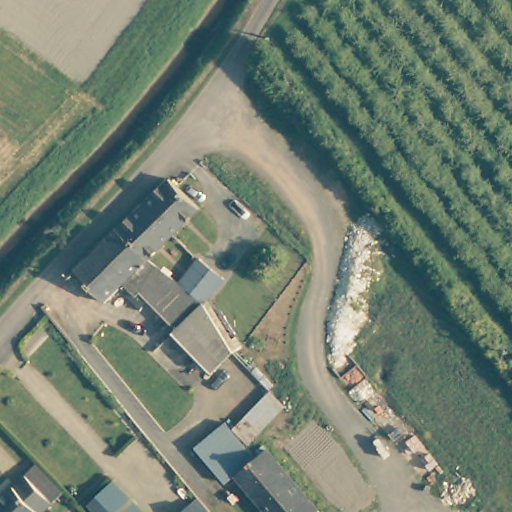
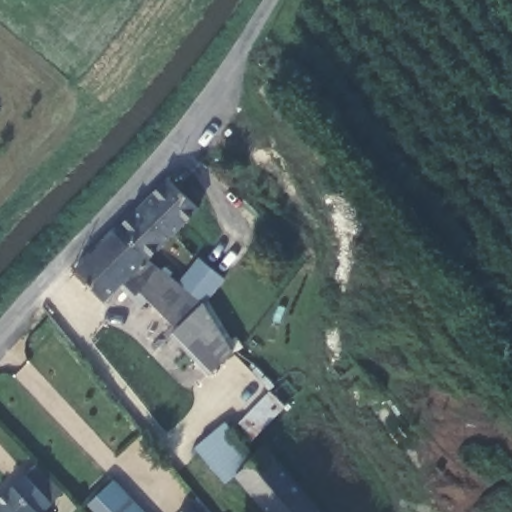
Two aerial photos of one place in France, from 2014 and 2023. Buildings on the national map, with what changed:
unchanged [(153,262),(181,288),(202,262),(229,284),(208,308),(236,357),(217,377),(178,338),(181,334),(152,306),(146,312),(128,287),(109,306),(79,276),(173,184),(203,212),(153,262)]
unchanged [(268,390),(283,405),(247,443),(246,444),(231,426),(268,390)]
unchanged [(231,426),(246,444),(247,443),(256,453),(225,481),(200,454),(231,426)]
unchanged [(236,474),(265,447),(319,512),(267,512),(236,474)]
unchanged [(31,512),(0,512),(0,487),(18,469),(46,497),(36,507),(31,512)]
unchanged [(113,479),(144,512),(97,512),(88,502),(113,479)]
unchanged [(174,511),(190,497),(203,512),(175,512),(174,511)]

